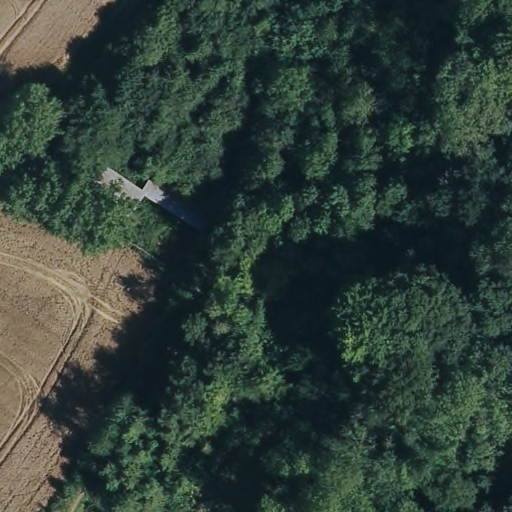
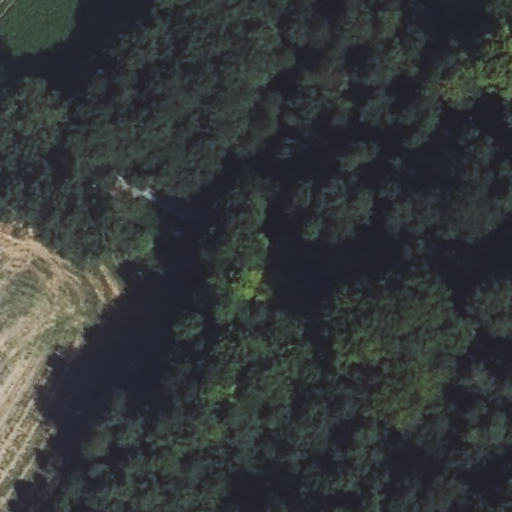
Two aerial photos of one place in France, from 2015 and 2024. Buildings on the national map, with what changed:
unchanged [(145,189),(155,169),(211,201),(201,230),(145,194),(131,211),(91,180),(103,162),(145,189)]

